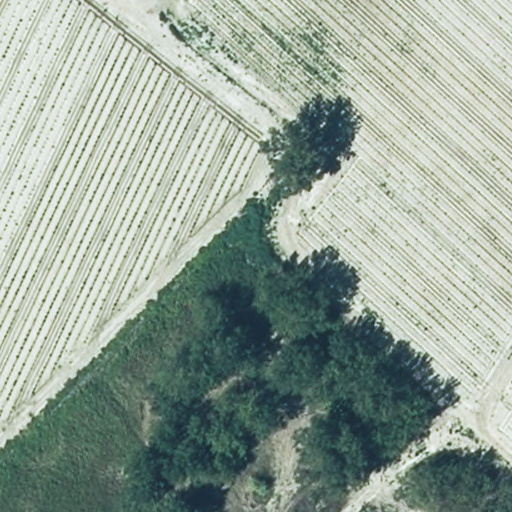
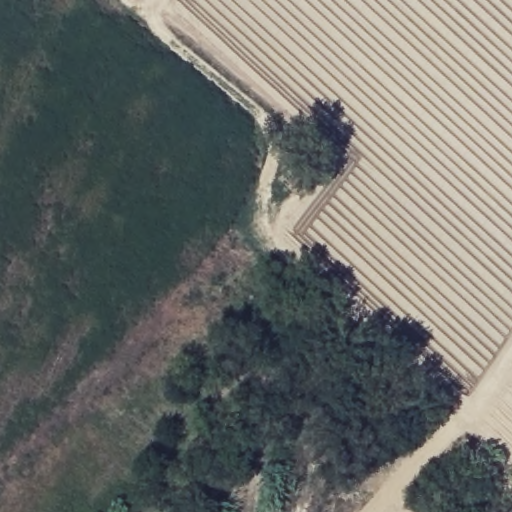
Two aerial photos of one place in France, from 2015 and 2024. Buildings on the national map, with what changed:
unchanged [(267,167),(245,154),(257,137),(277,148),(267,167)]

